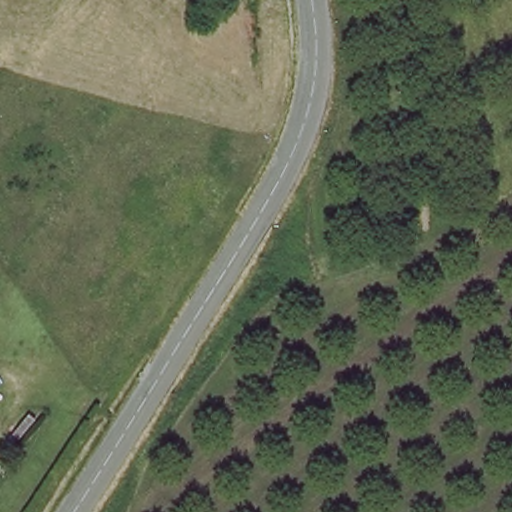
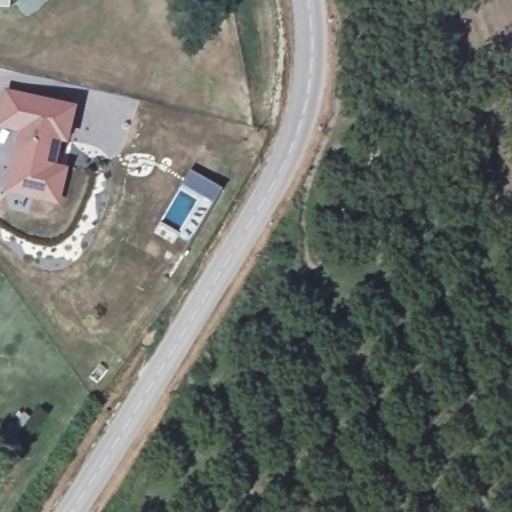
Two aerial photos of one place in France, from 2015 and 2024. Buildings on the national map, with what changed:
new [(62,142),(56,166),(69,169),(61,207),(5,194),(20,134),(0,128),(0,114),(6,90),(77,107),(69,144),(62,142)]

